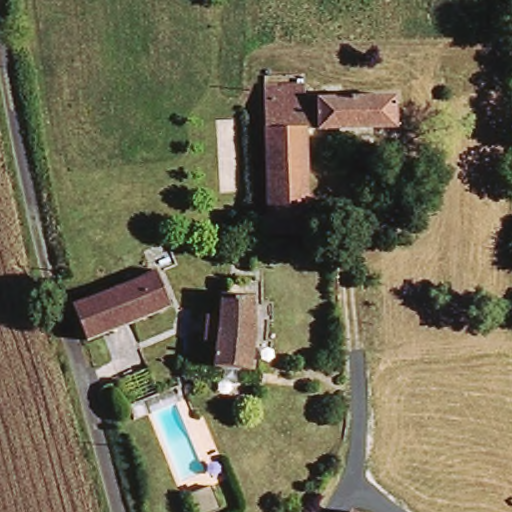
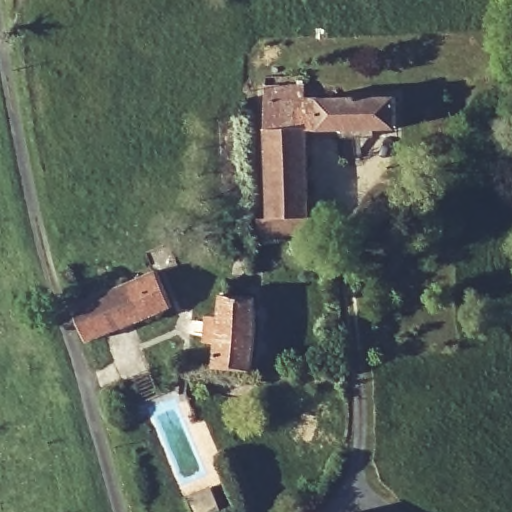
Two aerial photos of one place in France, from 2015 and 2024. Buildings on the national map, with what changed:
unchanged [(301,98),(391,98),(391,129),(304,130),(306,232),(254,236),(254,217),(263,217),(262,87),(301,87),(301,98)]
unchanged [(71,303),(156,269),(171,306),(85,339),(71,303)]
unchanged [(219,297),(253,298),(248,369),(215,367),(219,297)]
unchanged [(218,505),(199,512),(195,512),(187,492),(210,483),(218,505)]

